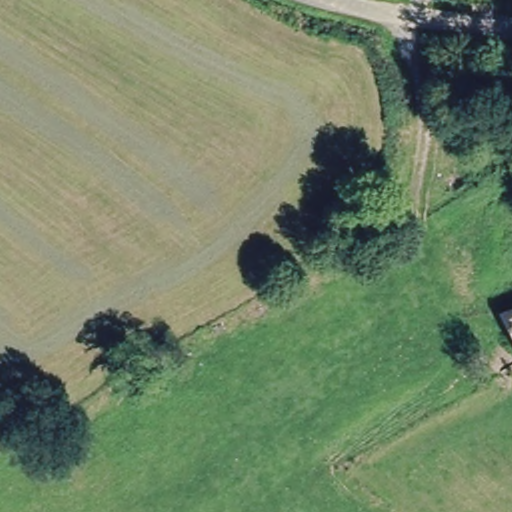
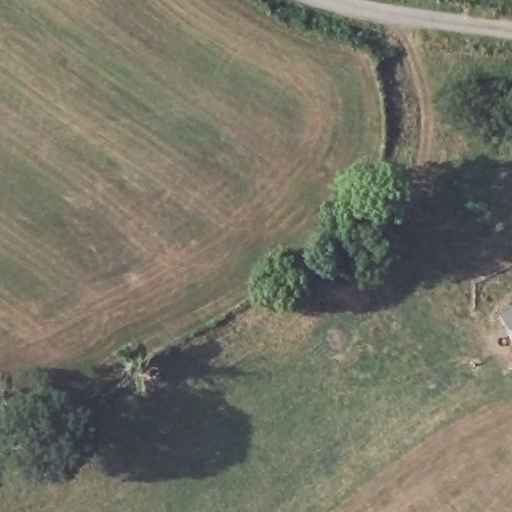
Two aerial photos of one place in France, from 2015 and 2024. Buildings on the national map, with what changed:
unchanged [(512,305),(512,363),(488,317),(512,305)]

